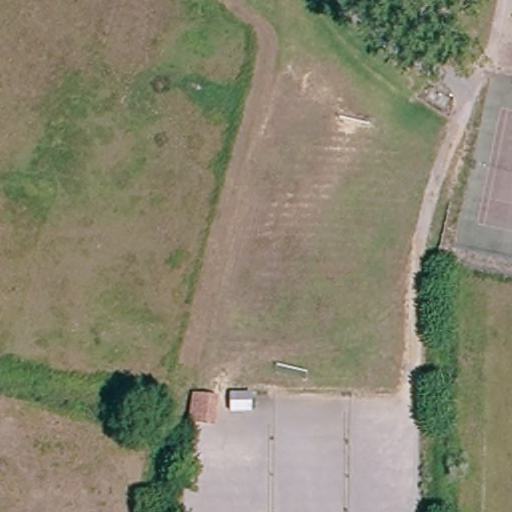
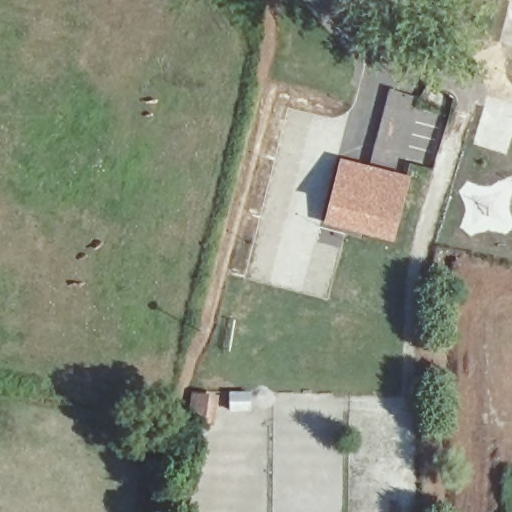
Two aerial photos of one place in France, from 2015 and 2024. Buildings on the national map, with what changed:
new [(411,179),(395,244),(323,225),(340,160),(411,179)]

